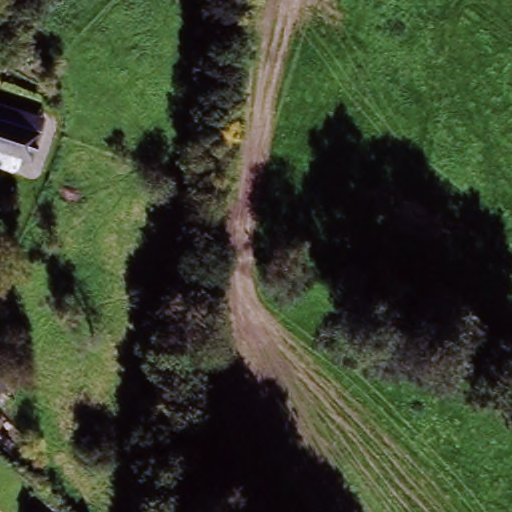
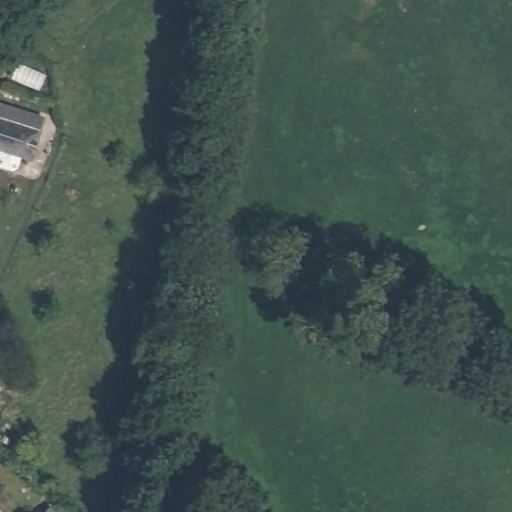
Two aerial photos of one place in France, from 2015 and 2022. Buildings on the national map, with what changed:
unchanged [(22,161),(21,169),(15,173),(0,169),(0,104),(48,121),(34,165),(22,161)]

